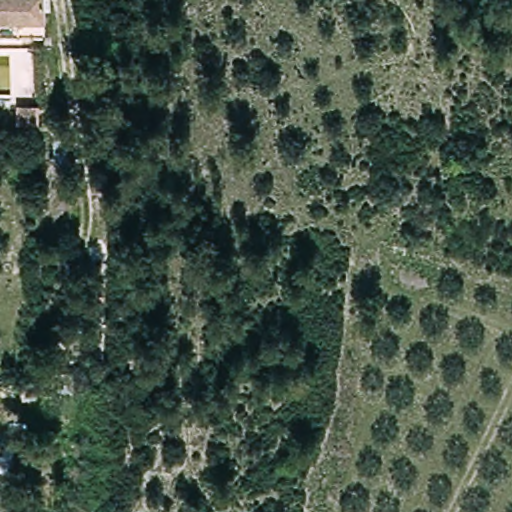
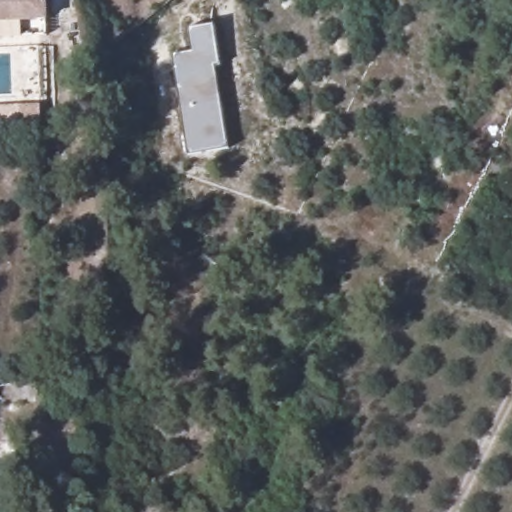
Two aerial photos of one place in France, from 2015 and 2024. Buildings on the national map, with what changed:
unchanged [(0,6),(0,0),(44,0),(44,6),(0,6)]
new [(193,52),(189,29),(213,25),(221,66),(216,67),(228,149),(188,156),(171,55),(193,52)]
unchanged [(40,118),(17,119),(17,101),(40,100),(40,118)]

